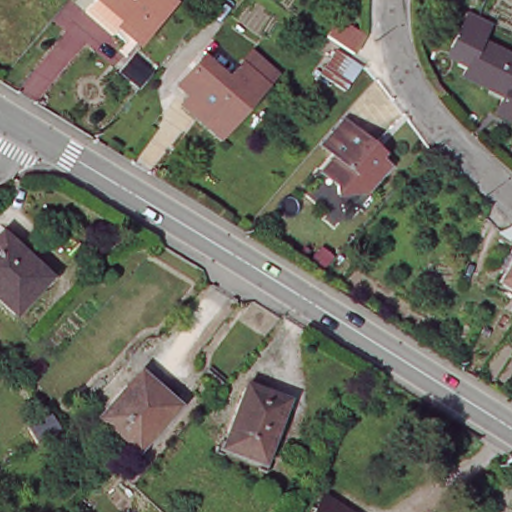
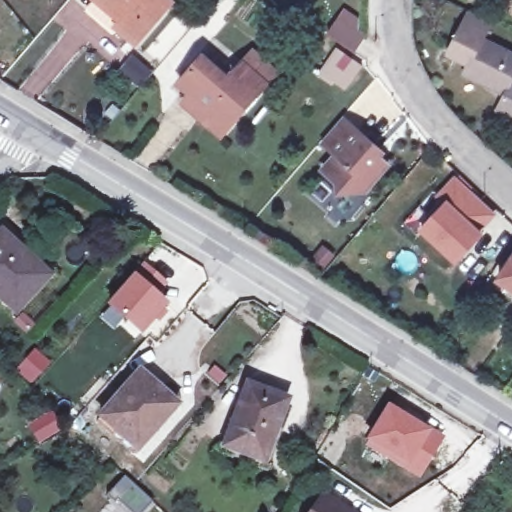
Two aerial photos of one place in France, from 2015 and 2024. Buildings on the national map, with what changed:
unchanged [(140,40),(95,2),(96,0),(173,0),(174,1),(140,40)]
unchanged [(512,111),(503,106),(510,93),(467,71),(487,36),(512,49),(512,111)]
unchanged [(366,68),(350,91),(325,75),(342,51),(366,68)]
unchanged [(281,73),(227,134),(178,90),(206,59),(230,81),(256,53),(281,73)]
unchanged [(359,185),(355,189),(339,190),(337,181),(323,168),(335,153),(332,150),(321,139),(329,130),(342,115),(354,126),(372,143),(366,150),(371,155),(375,151),(388,164),(372,182),(364,190),(359,185)]
new [(482,231),(485,236),(457,266),(422,232),(445,207),(437,198),(455,177),(497,215),(482,231)]
unchanged [(25,251),(20,257),(47,282),(18,313),(0,296),(0,235),(4,232),(25,251)]
new [(107,307),(105,304),(143,260),(168,281),(159,293),(170,303),(141,335),(122,319),(114,329),(100,316),(107,307)]
unchanged [(512,273),(512,295),(502,289),(512,273)]
unchanged [(180,405),(140,451),(102,417),(144,372),(180,405)]
unchanged [(285,400),(272,434),(269,432),(259,459),(225,446),(248,385),(285,400)]
new [(387,403),(445,436),(420,480),(363,445),(387,403)]
unchanged [(356,512),(312,512),(327,491),(356,512)]

